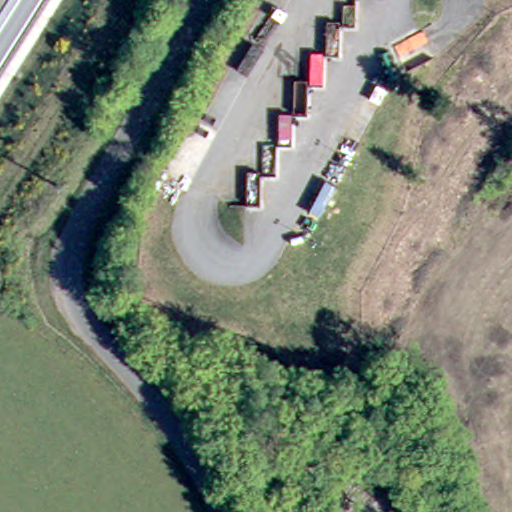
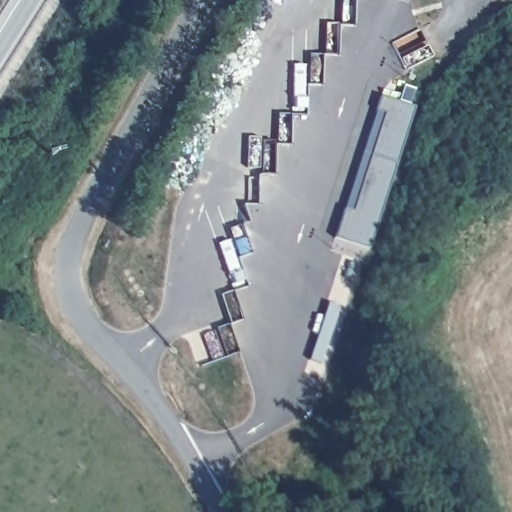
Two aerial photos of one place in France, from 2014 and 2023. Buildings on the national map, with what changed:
new [(412,105),(367,248),(332,236),(377,95),(412,105)]

